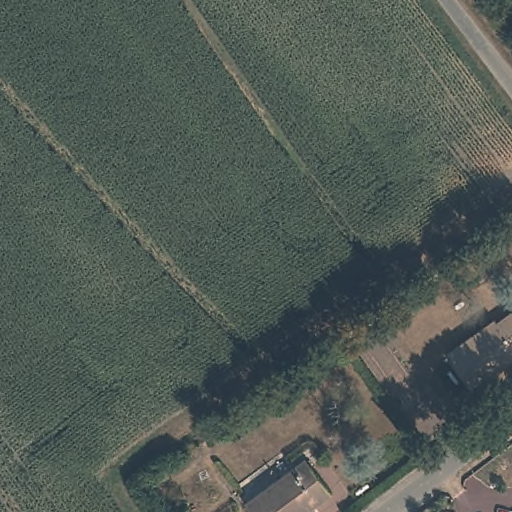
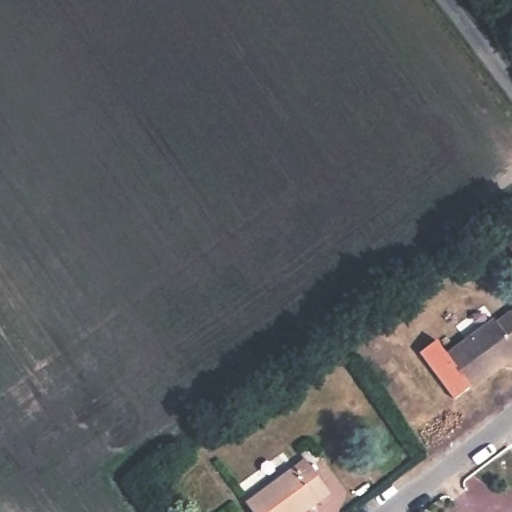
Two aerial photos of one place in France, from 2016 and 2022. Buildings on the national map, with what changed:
unchanged [(505,239),(512,235),(512,248),(505,239)]
unchanged [(443,351),(494,315),(497,318),(510,309),(512,311),(512,353),(468,384),(443,351)]
unchanged [(256,512),(245,498),(297,463),(300,467),(312,463),(333,490),(302,512),(256,512)]

